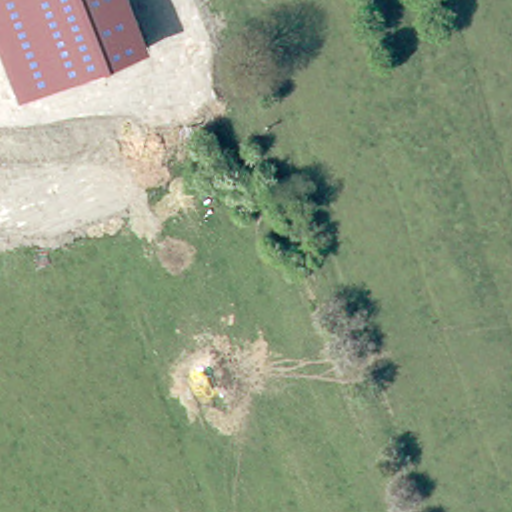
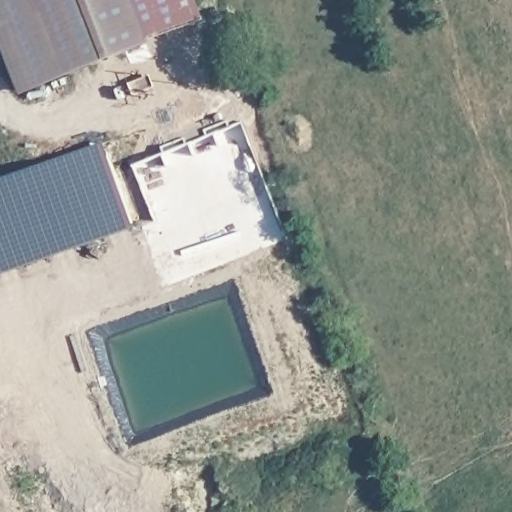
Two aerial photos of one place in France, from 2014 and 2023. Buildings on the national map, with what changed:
unchanged [(150,44),(20,97),(0,45),(0,0),(133,0),(150,44)]
new [(135,229),(0,277),(0,180),(105,143),(135,229)]

